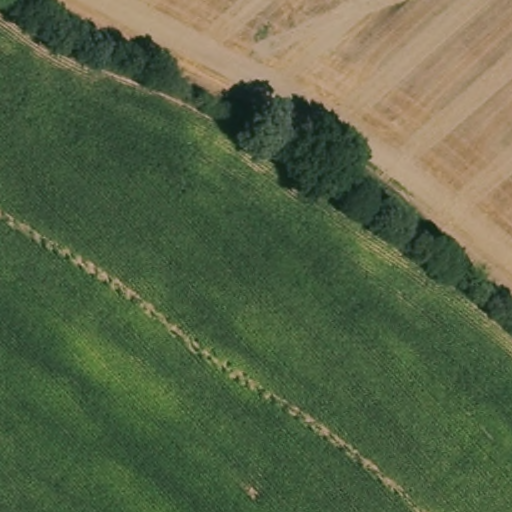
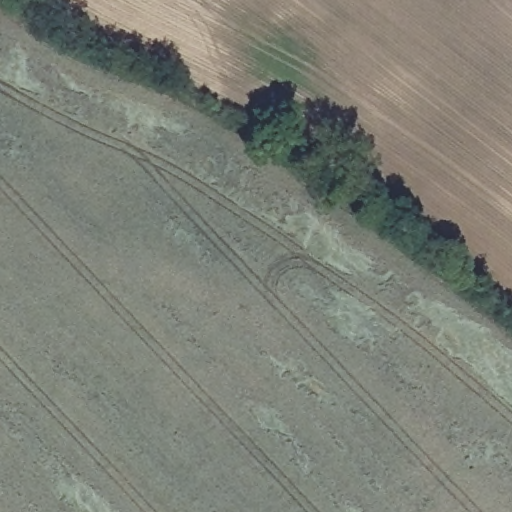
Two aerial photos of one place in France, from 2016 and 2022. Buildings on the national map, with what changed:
[]

